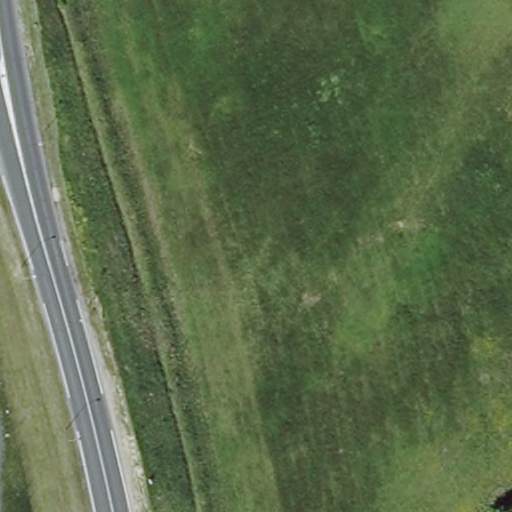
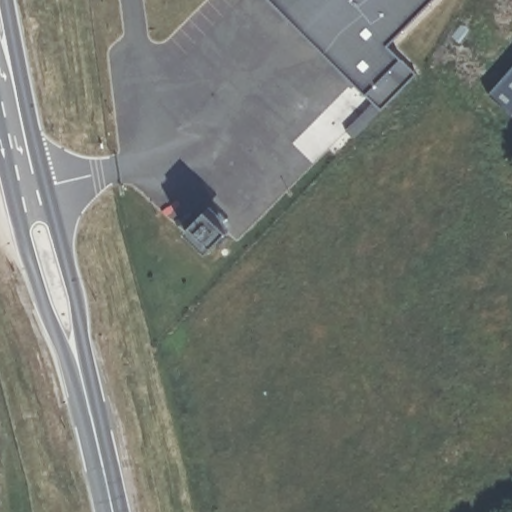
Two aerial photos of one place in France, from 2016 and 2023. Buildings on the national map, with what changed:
new [(388,47),(402,59),(416,74),(355,138),(346,129),(373,102),(366,95),(270,0),(434,0),(388,47)]
new [(512,116),(489,96),(512,70),(512,116)]
new [(211,211),(232,232),(211,254),(190,232),(211,211)]

